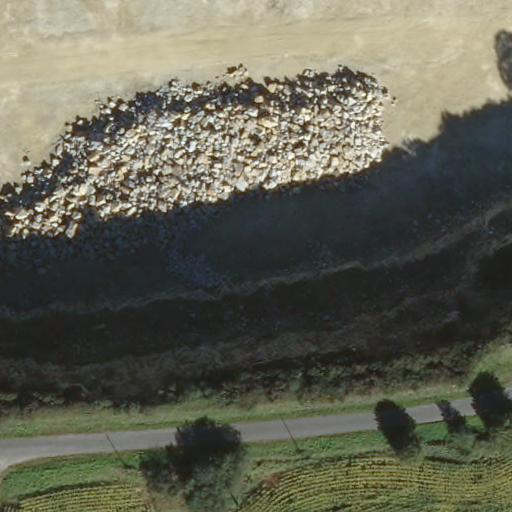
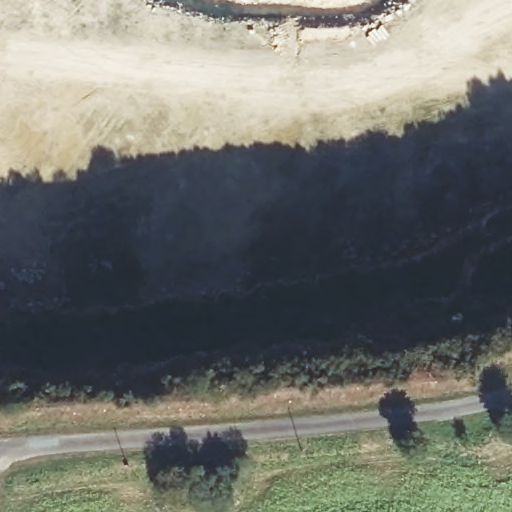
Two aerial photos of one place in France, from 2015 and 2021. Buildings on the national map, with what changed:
unchanged [(185,482),(215,475),(218,492),(187,498),(185,482)]

